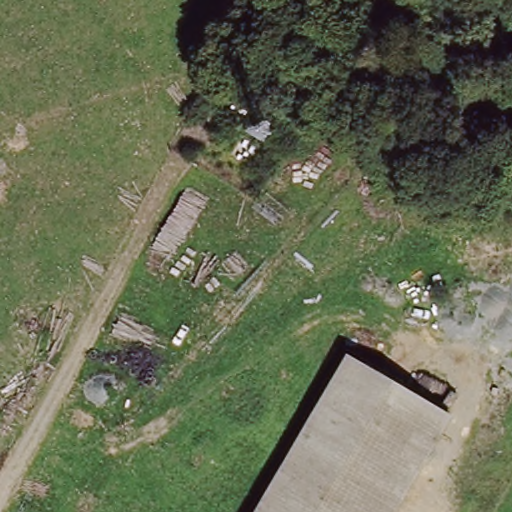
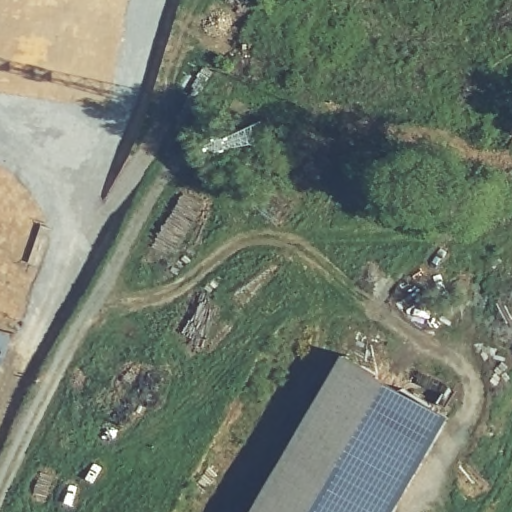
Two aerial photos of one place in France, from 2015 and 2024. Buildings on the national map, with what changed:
new [(0,366),(0,328),(13,334),(0,366)]
unchanged [(442,418),(386,512),(269,512),(354,366),(442,418)]

